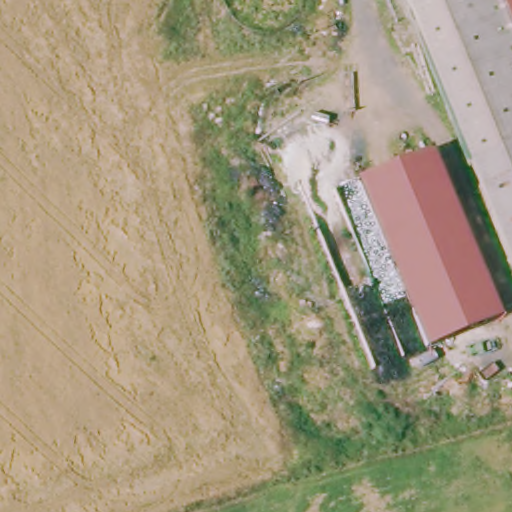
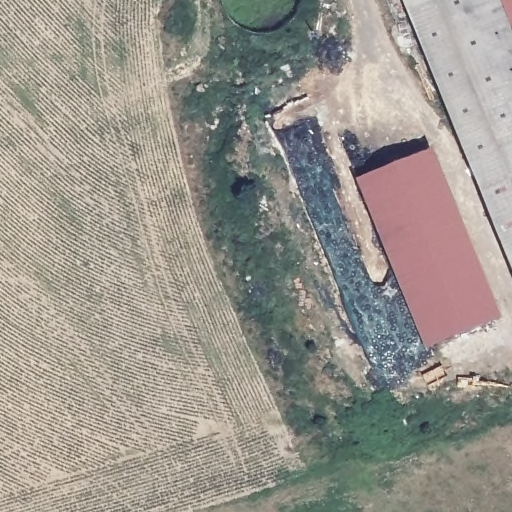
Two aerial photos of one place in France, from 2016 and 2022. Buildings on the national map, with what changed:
unchanged [(512,0),(512,255),(405,0),(512,0)]
unchanged [(431,344),(363,179),(437,149),(505,315),(431,344)]

